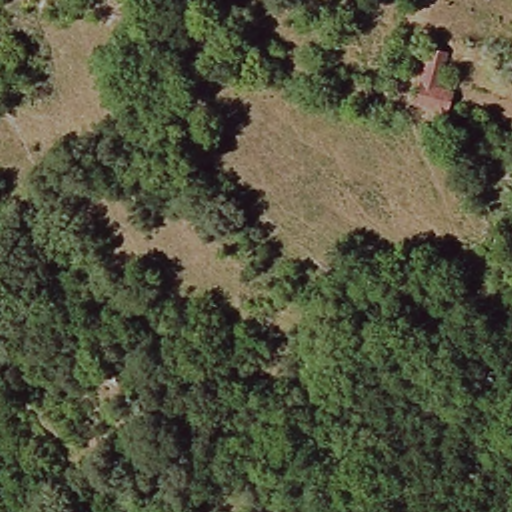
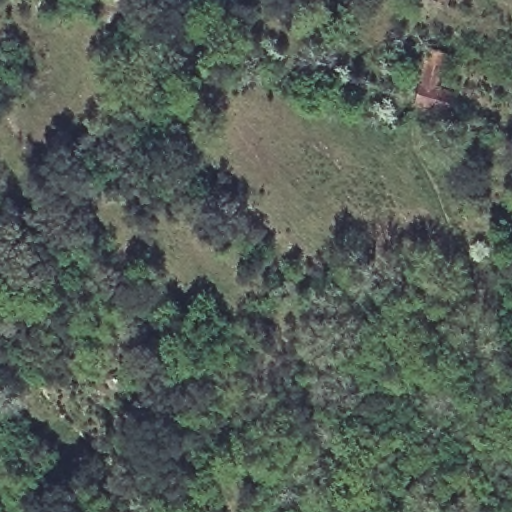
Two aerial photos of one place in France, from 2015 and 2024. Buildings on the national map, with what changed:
unchanged [(453,84),(441,115),(405,103),(415,74),(402,70),(411,45),(424,49),(445,57),(441,72),(438,79),(453,84)]

